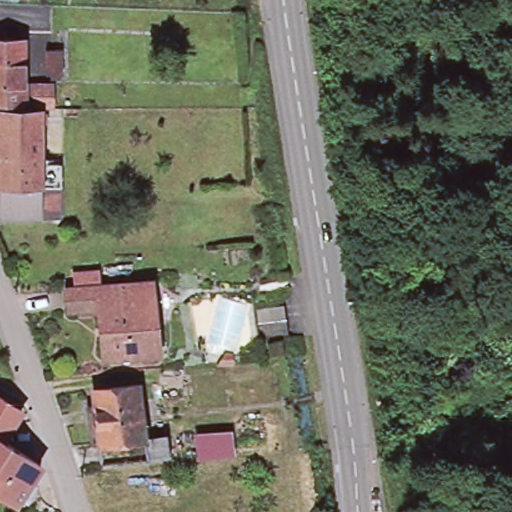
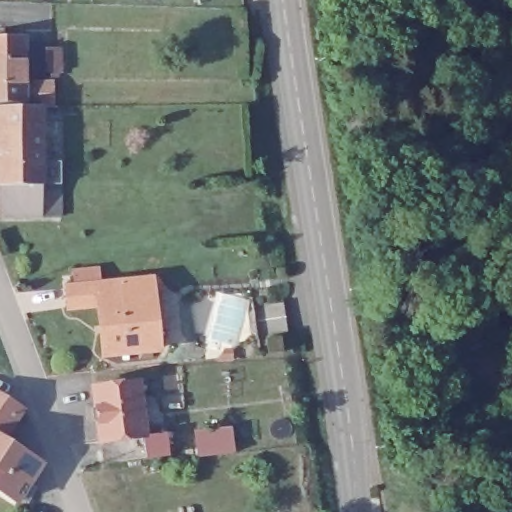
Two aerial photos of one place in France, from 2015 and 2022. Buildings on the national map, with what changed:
unchanged [(22,106),(22,101),(0,101),(0,36),(22,37),(22,62),(22,84),(50,84),(50,106),(22,106)]
unchanged [(59,48),(59,75),(42,74),(43,48),(59,48)]
unchanged [(37,143),(42,143),(42,148),(37,148),(37,158),(0,158),(0,108),(37,108),(37,143)]
unchanged [(39,185),(57,185),(57,218),(39,219),(0,219),(0,158),(37,158),(39,185)]
unchanged [(70,308),(69,289),(150,281),(160,349),(107,356),(102,305),(70,308)]
unchanged [(242,340),(240,325),(239,309),(267,305),(270,321),(272,337),(242,340)]
unchanged [(97,443),(90,389),(137,383),(144,437),(165,434),(168,455),(147,458),(100,463),(97,443)]
unchanged [(0,488),(0,399),(20,409),(10,429),(4,440),(43,460),(22,500),(0,488)]
unchanged [(197,429),(230,423),(235,447),(200,451),(197,429)]

